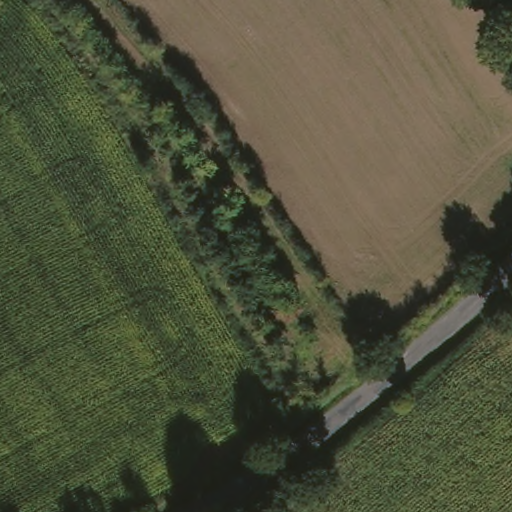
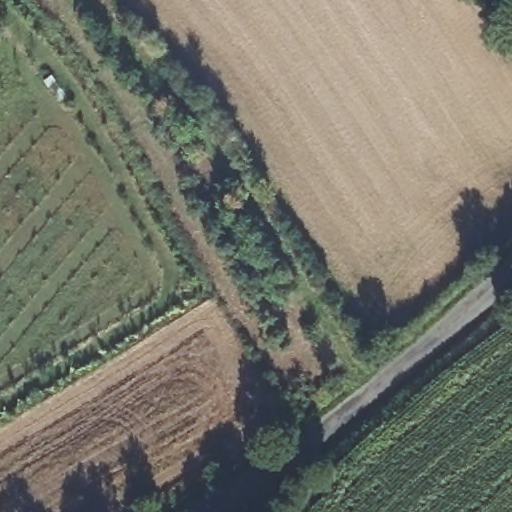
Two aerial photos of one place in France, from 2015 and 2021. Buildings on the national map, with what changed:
[]

